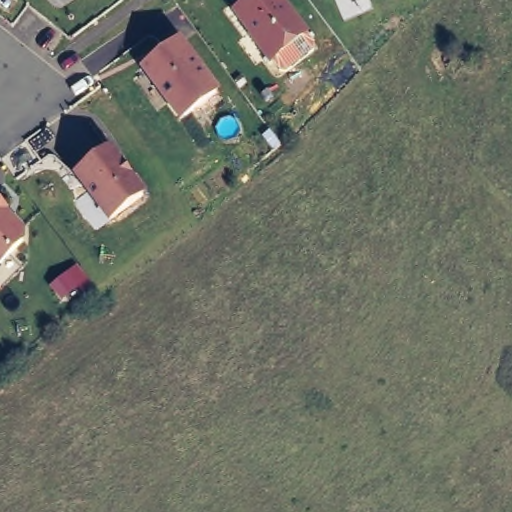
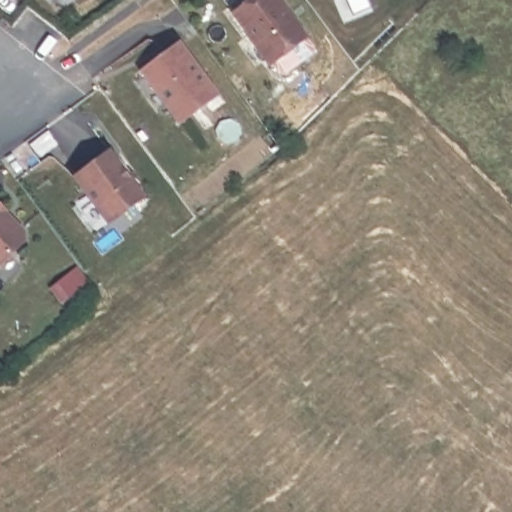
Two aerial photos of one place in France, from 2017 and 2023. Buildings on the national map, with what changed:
unchanged [(235,10),(250,0),(285,0),(311,38),(272,65),(235,10)]
unchanged [(182,36),(220,94),(179,124),(140,68),(182,36)]
unchanged [(114,144),(147,195),(108,224),(73,176),(114,144)]
unchanged [(29,235),(0,263),(0,201),(29,235)]

